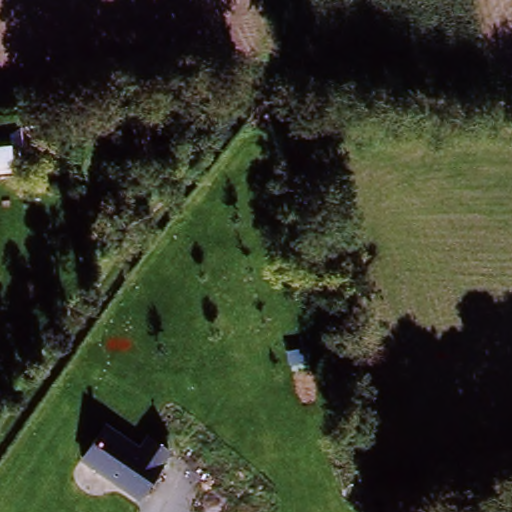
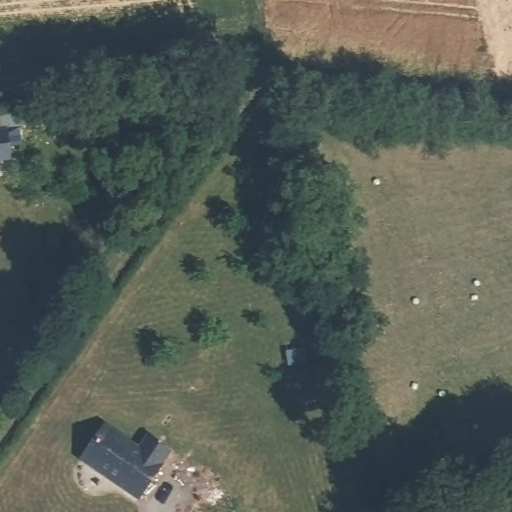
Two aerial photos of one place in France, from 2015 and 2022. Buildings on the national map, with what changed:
unchanged [(21,147),(9,148),(10,162),(0,164),(0,119),(18,117),(21,147)]
unchanged [(106,426),(142,445),(151,432),(172,446),(140,497),(80,459),(106,426)]

